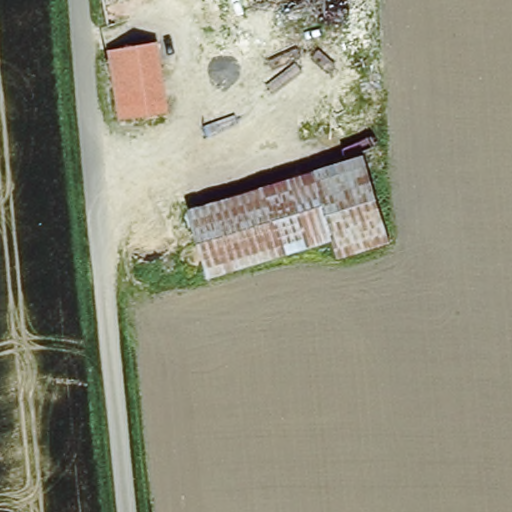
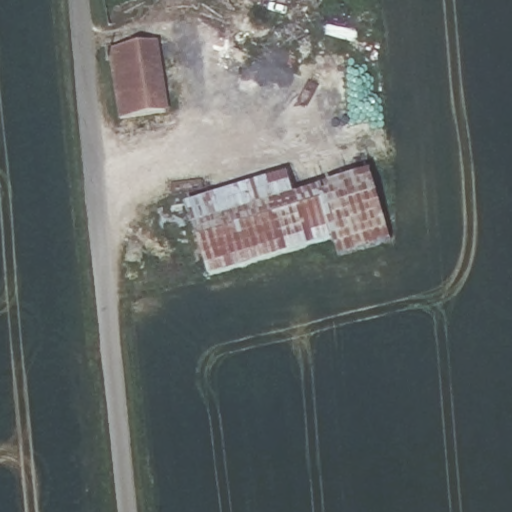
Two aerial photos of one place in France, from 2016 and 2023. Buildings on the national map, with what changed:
unchanged [(145,46),(158,45),(166,115),(117,119),(110,50),(145,46)]
unchanged [(357,154),(386,238),(335,255),(328,236),(312,186),(307,170),(357,154)]
unchanged [(204,274),(188,226),(183,211),(307,170),(312,186),(328,236),(204,274)]

